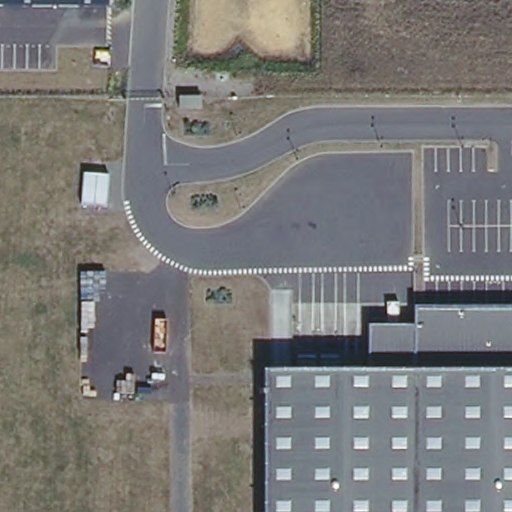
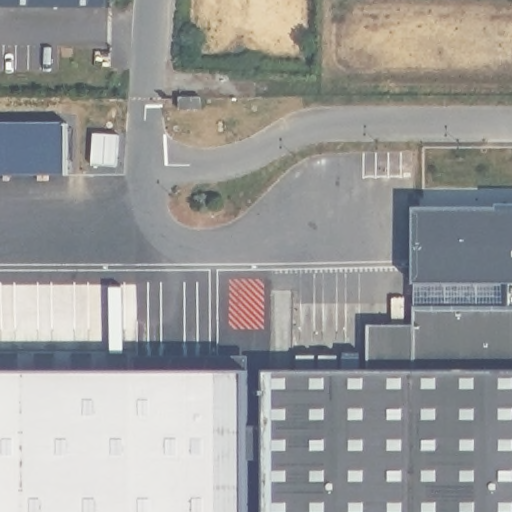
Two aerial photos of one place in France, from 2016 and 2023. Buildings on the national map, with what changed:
unchanged [(0,3),(0,0),(107,0),(107,4),(0,3)]
new [(67,125),(67,174),(0,174),(0,124),(67,125)]
new [(512,207),(512,282),(415,285),(416,207),(512,207)]
unchanged [(512,512),(265,512),(265,370),(366,367),(365,324),(414,323),(413,308),(512,308),(512,512)]
new [(249,367),(249,512),(0,512),(0,370),(249,367)]

